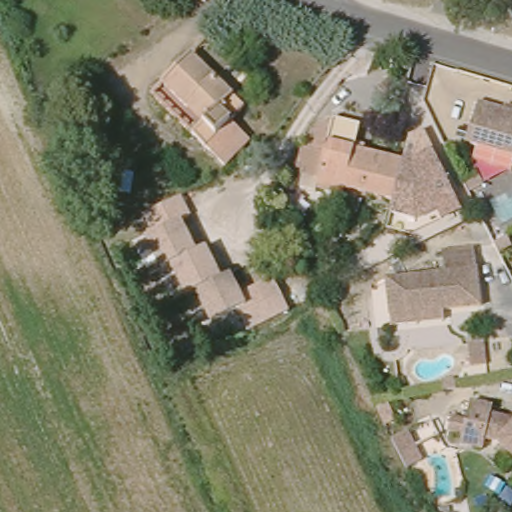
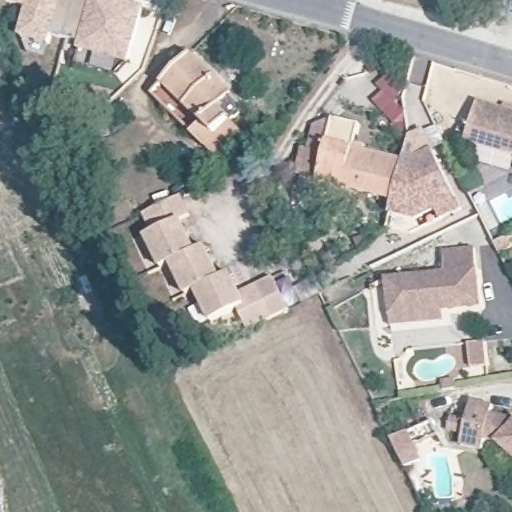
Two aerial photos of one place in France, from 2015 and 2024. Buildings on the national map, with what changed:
new [(145,10),(129,65),(80,51),(82,44),(55,35),(51,47),(18,39),(27,10),(5,4),(6,0),(110,0),(145,10)]
unchanged [(241,115),(203,155),(188,142),(199,128),(159,94),(183,65),(241,115)]
unchanged [(512,152),(468,139),(480,97),(512,107),(512,152)]
unchanged [(394,211),(320,188),(340,129),(366,136),(361,156),(406,170),(394,211)]
unchanged [(433,157),(456,208),(422,225),(393,220),(394,211),(406,170),(433,157)]
unchanged [(248,333),(235,310),(203,326),(191,295),(179,301),(167,267),(154,272),(144,236),(152,231),(147,213),(172,202),(191,252),(204,247),(220,279),(231,273),(241,295),(271,281),(286,310),(248,333)]
unchanged [(501,237),(505,246),(492,252),(488,244),(501,237)]
unchanged [(394,322),(393,312),(389,276),(449,270),(447,250),(478,246),(483,304),(446,307),(447,317),(394,322)]
unchanged [(485,433),(482,443),(461,438),(463,427),(449,424),(452,411),(467,415),(471,395),(493,400),(491,408),(508,412),(512,415),(512,449),(497,435),(485,433)]
unchanged [(404,433),(418,462),(402,469),(389,440),(404,433)]

